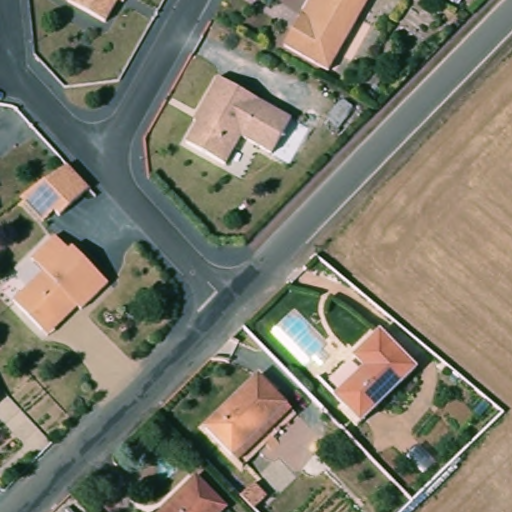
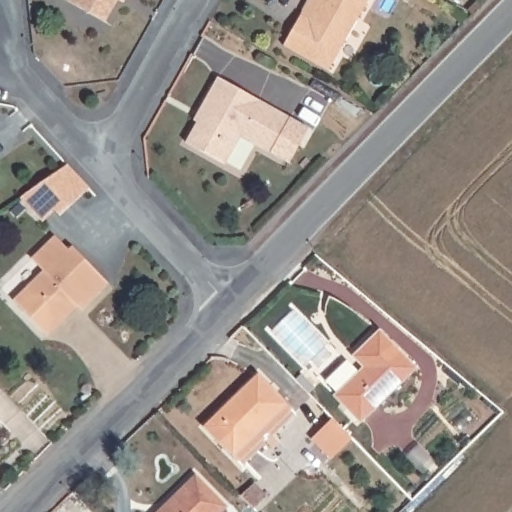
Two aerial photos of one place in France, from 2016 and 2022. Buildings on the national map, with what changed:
unchanged [(106,18),(74,0),(117,0),(106,18)]
unchanged [(328,67),(283,39),(296,18),(307,0),(369,0),(328,67)]
unchanged [(290,112),(270,149),(240,131),(224,159),(185,140),(196,121),(193,119),(199,109),(217,75),(290,112)]
unchanged [(66,169),(88,192),(59,219),(55,215),(44,225),(21,200),(34,191),(66,169)]
unchanged [(44,332),(15,302),(44,272),(32,260),(56,236),(69,250),(73,247),(109,283),(80,313),(77,311),(50,338),(44,332)]
unchanged [(358,418),(335,394),(360,370),(363,363),(356,356),(382,332),(414,365),(358,418)]
unchanged [(240,462),(200,422),(251,371),(290,412),(240,462)]
unchanged [(166,512),(196,483),(222,511),(221,512),(166,512)]

